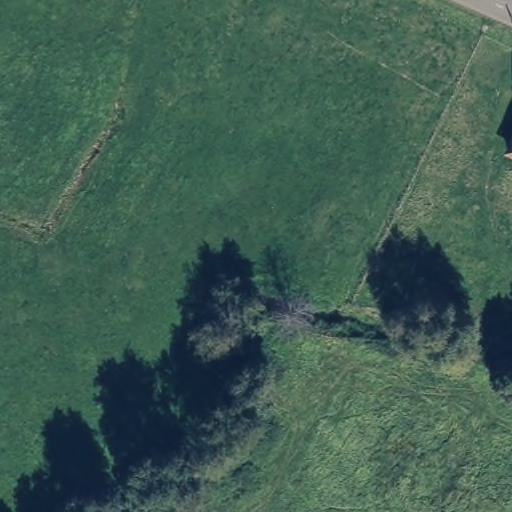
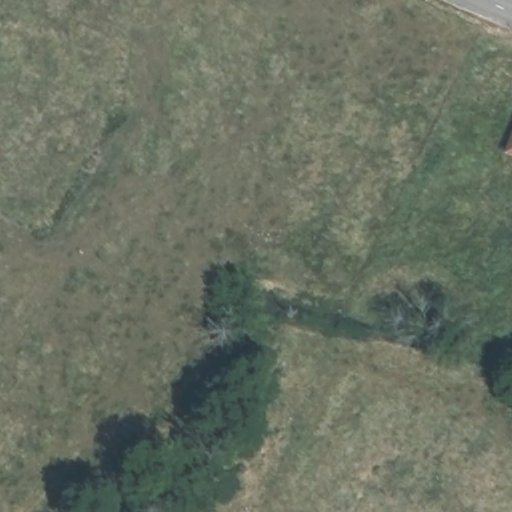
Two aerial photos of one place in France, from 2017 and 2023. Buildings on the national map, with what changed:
unchanged [(488,148),(502,119),(512,124),(512,158),(488,148)]

